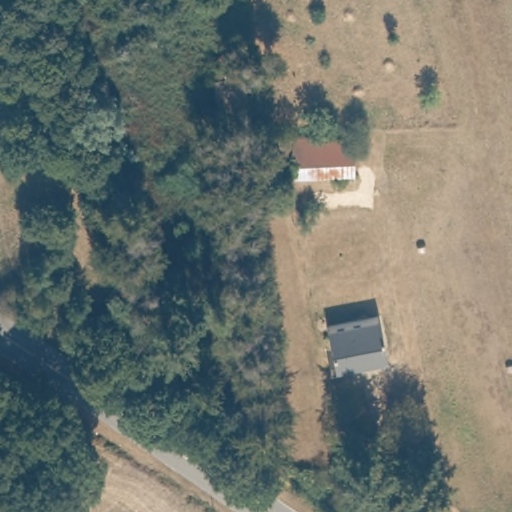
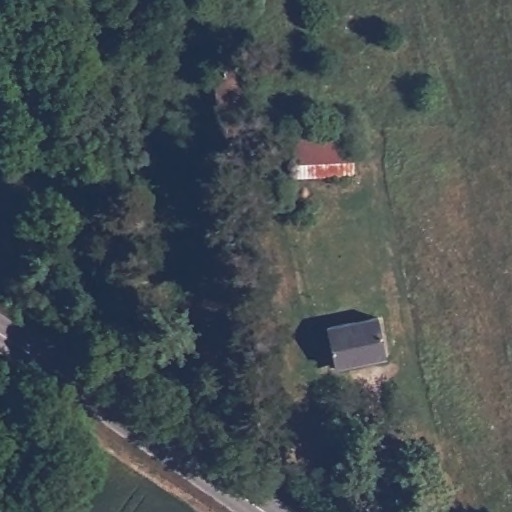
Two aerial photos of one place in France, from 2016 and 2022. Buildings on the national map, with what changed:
unchanged [(360,172),(300,176),(297,158),(278,157),(274,133),(297,132),(297,135),(357,133),(360,172)]
unchanged [(386,355),(335,366),(327,326),(379,316),(386,355)]

